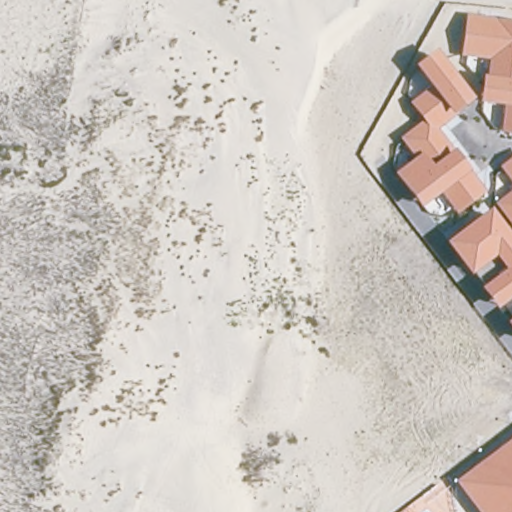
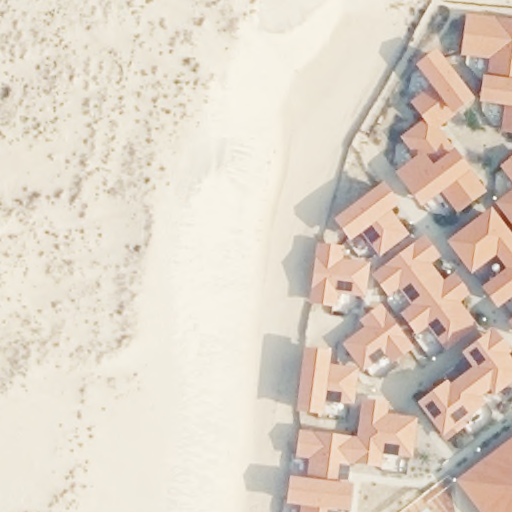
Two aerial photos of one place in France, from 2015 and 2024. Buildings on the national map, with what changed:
unchanged [(461,56),(466,16),(512,21),(512,133),(502,132),(504,108),(479,103),(481,77),(489,79),(488,60),(461,56)]
unchanged [(442,194),(420,211),(394,176),(414,160),(398,140),(423,121),(410,102),(431,86),(416,65),(434,52),(473,102),(454,117),(439,130),(454,151),(470,171),(486,193),(455,216),(442,194)]
unchanged [(498,168),(512,157),(512,185),(498,168)]
new [(369,229),(349,243),(332,220),(382,182),(399,205),(391,211),(408,234),(379,257),(369,243),(375,238),(369,229)]
unchanged [(495,203),(512,190),(512,224),(495,203)]
unchanged [(496,311),(479,290),(503,272),(493,260),(472,277),(447,244),(489,210),(512,239),(512,299),(496,311)]
new [(424,234),(440,257),(432,264),(443,279),(454,272),(470,294),(460,303),(477,326),(444,351),(434,338),(441,332),(434,322),(416,336),(398,313),(416,297),(407,285),(387,298),(370,274),(424,234)]
new [(315,243),(344,248),(343,258),(370,261),(364,298),(347,295),(349,286),(339,284),(335,308),(308,304),(315,243)]
new [(362,328),(357,321),(380,304),(413,348),(391,366),(379,353),(360,371),(354,364),(340,344),(362,328)]
unchanged [(507,325),(512,320),(512,331),(507,325)]
new [(446,380),(449,384),(469,368),(459,354),(493,329),(512,353),(512,354),(509,356),(512,360),(512,384),(444,442),(415,404),(446,380)]
new [(302,348),(331,352),(329,363),(325,393),(322,417),(294,413),(302,348)]
new [(329,363),(352,366),(354,364),(360,371),(353,405),(338,403),(340,395),(325,393),(329,363)]
new [(298,430),(355,437),(361,399),(389,402),(388,413),(418,418),(412,459),(396,457),(397,448),(384,446),(380,469),(339,466),(337,482),(305,479),(307,460),(294,458),(298,430)]
unchanged [(478,512),(454,482),(512,439),(512,512),(478,512)]
new [(289,477),(305,479),(337,482),(353,484),(349,512),(335,512),(328,511),(328,512),(299,512),(299,507),(285,505),(289,477)]

